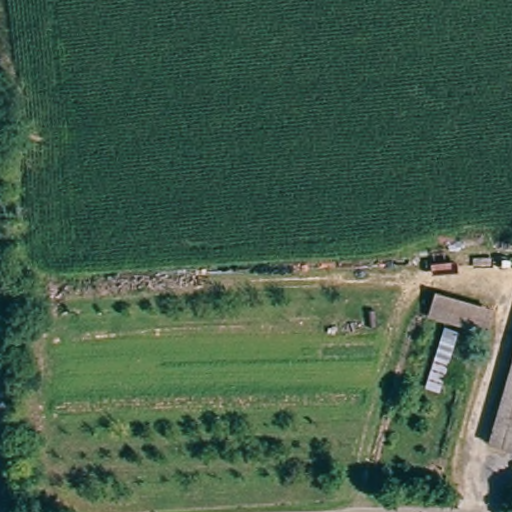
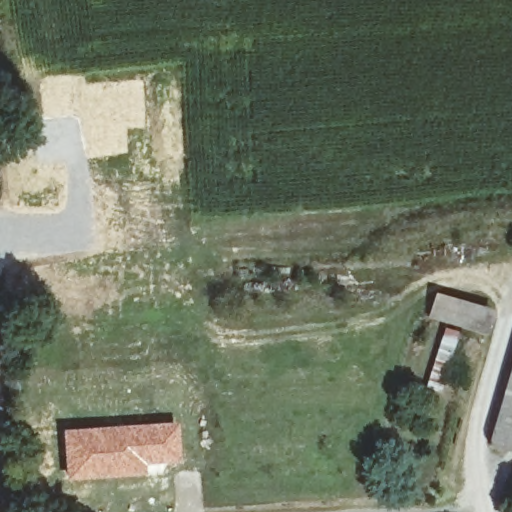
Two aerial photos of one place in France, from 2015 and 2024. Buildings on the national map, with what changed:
unchanged [(494,309),(485,337),(427,319),(435,292),(494,309)]
unchanged [(512,382),(512,474),(487,466),(512,382)]
new [(175,421),(177,463),(147,466),(148,474),(65,482),(61,428),(175,421)]

